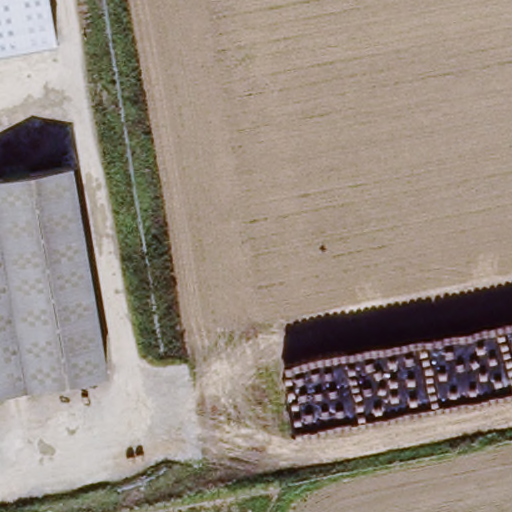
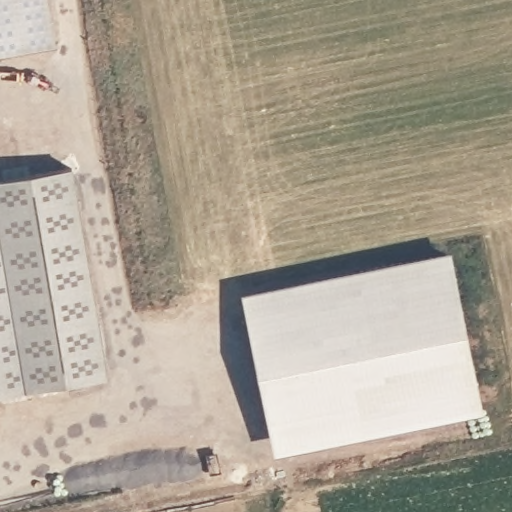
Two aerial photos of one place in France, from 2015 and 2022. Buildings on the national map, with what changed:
unchanged [(44,0),(51,49),(0,58),(0,0),(44,0)]
unchanged [(105,381),(0,398),(0,183),(70,172),(105,381)]
new [(485,413),(276,456),(242,294),(452,251),(485,413)]

